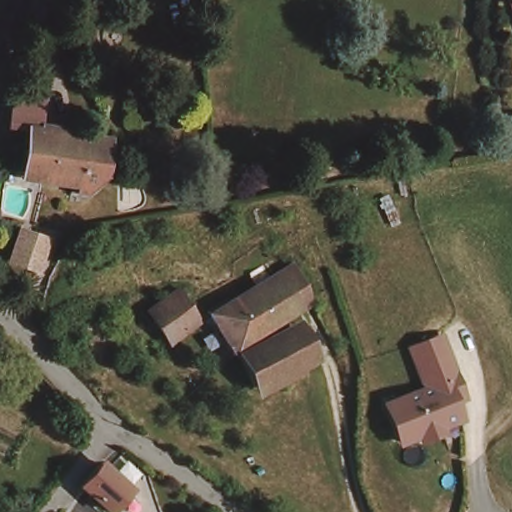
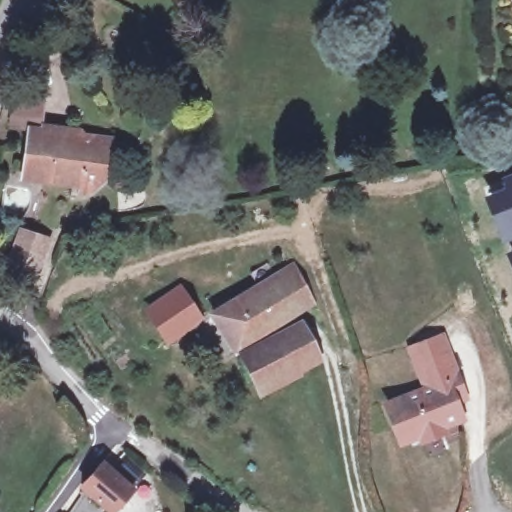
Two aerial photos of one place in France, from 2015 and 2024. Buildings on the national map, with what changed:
unchanged [(107,176),(105,190),(92,200),(76,197),(77,190),(20,183),(21,180),(12,179),(13,170),(22,172),(27,140),(10,137),(15,101),(43,106),(37,142),(107,152),(103,175),(107,176)]
new [(498,177),(512,171),(512,239),(500,243),(482,196),(502,188),(498,177)]
unchanged [(42,262),(15,248),(25,222),(55,234),(42,262)]
new [(512,271),(505,252),(512,249),(512,271)]
unchanged [(209,296),(227,283),(235,296),(277,268),(297,256),(317,290),(300,302),(238,343),(209,296)]
unchanged [(152,315),(148,306),(160,299),(178,288),(198,317),(193,320),(165,337),(152,315)]
unchanged [(241,347),(295,317),(306,311),(322,347),(312,352),(257,377),(241,347)]
unchanged [(438,426),(440,432),(418,440),(417,434),(398,441),(385,403),(424,390),(415,365),(408,349),(438,337),(445,354),(457,383),(462,398),(452,402),(459,418),(438,426)]
unchanged [(112,508),(80,482),(98,460),(130,487),(112,508)]

